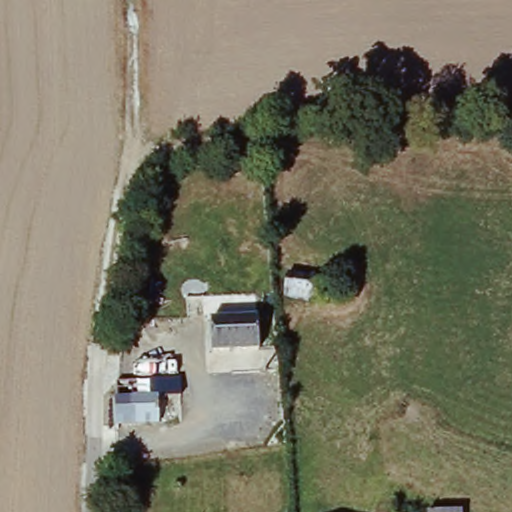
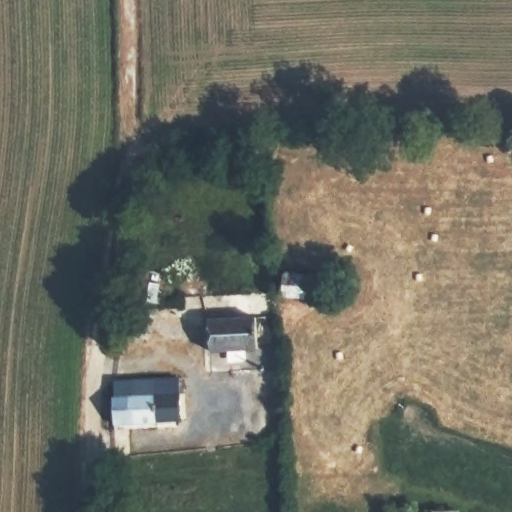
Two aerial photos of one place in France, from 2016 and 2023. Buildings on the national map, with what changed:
unchanged [(286,275),(319,281),(316,300),(283,294),(286,275)]
unchanged [(258,324),(259,355),(213,358),(211,327),(258,324)]
unchanged [(158,402),(161,429),(121,430),(120,407),(158,402)]
unchanged [(454,512),(444,512),(454,511),(454,512)]

